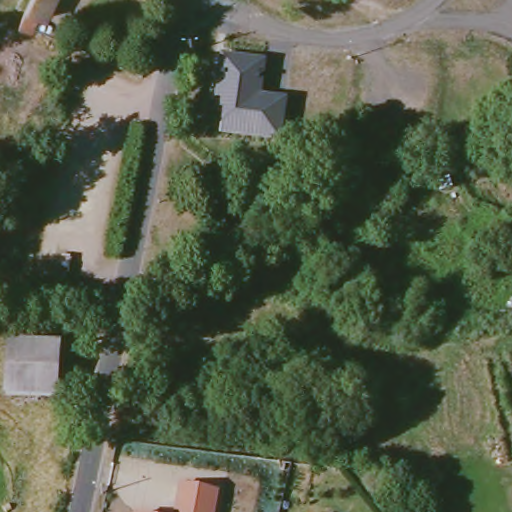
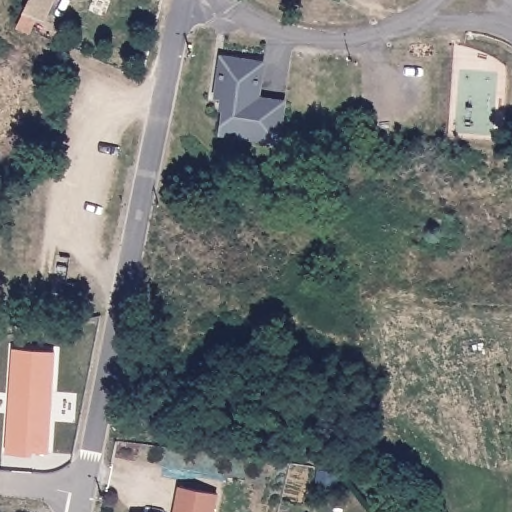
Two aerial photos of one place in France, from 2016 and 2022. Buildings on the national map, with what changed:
unchanged [(44,14),(37,11),(30,24),(20,20),(28,0),(50,0),(44,14)]
unchanged [(225,111),(221,110),(222,98),(217,97),(224,55),(267,61),(262,96),(288,101),(282,144),(221,136),(225,111)]
unchanged [(80,292),(77,306),(66,305),(68,291),(80,292)]
new [(15,350),(52,353),(46,454),(29,453),(29,457),(7,456),(15,350)]
unchanged [(215,512),(178,512),(184,484),(219,492),(215,512)]

